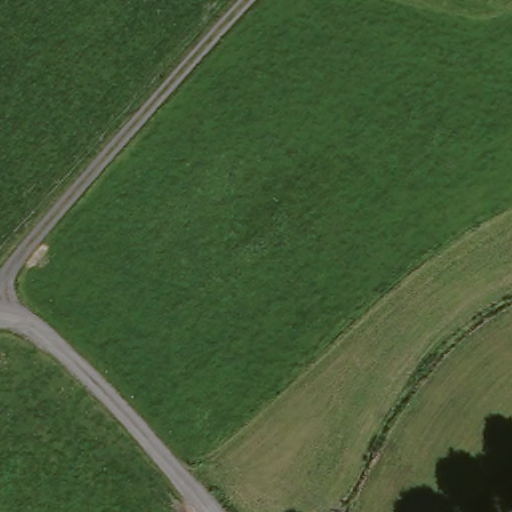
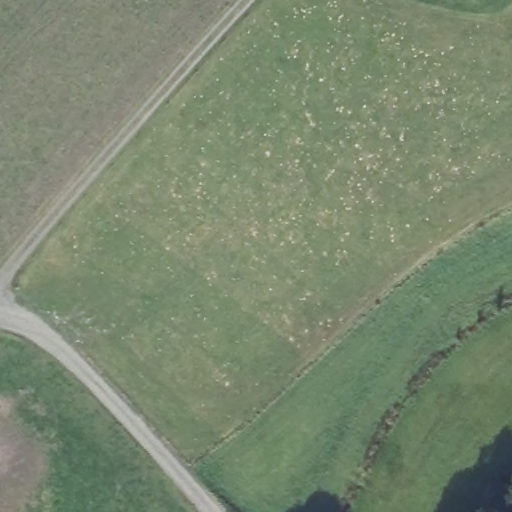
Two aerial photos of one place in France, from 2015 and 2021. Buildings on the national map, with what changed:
[]

